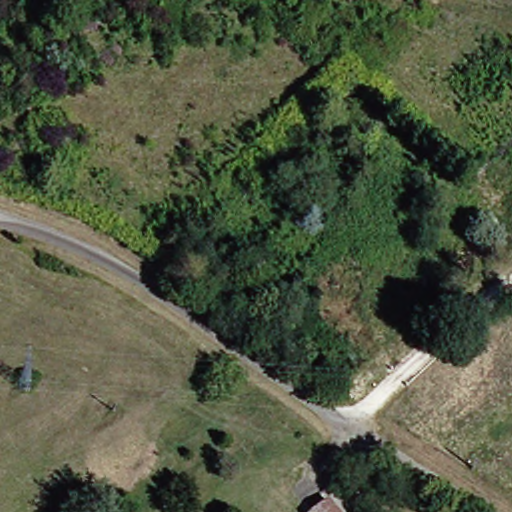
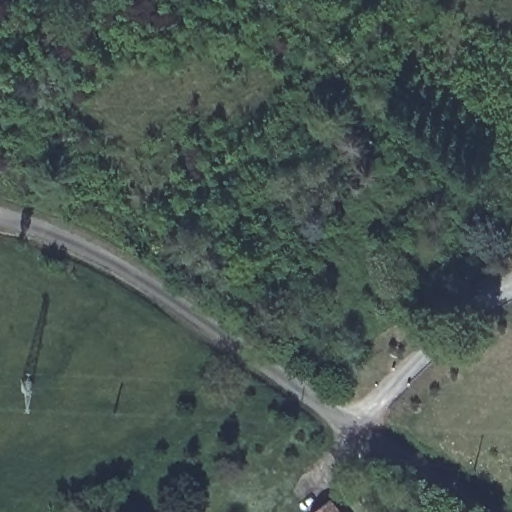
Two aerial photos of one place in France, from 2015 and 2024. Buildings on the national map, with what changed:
unchanged [(341,506),(344,512),(331,512),(341,506)]

